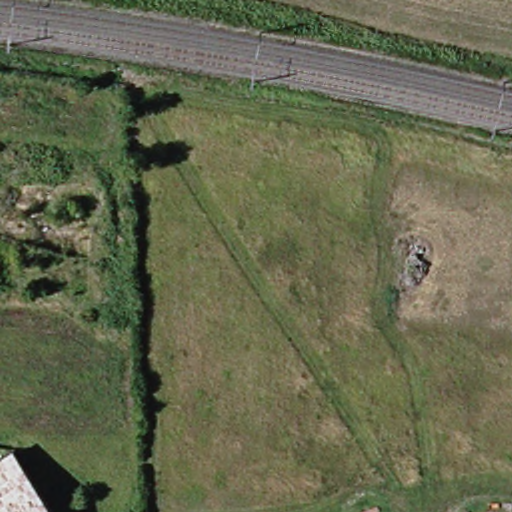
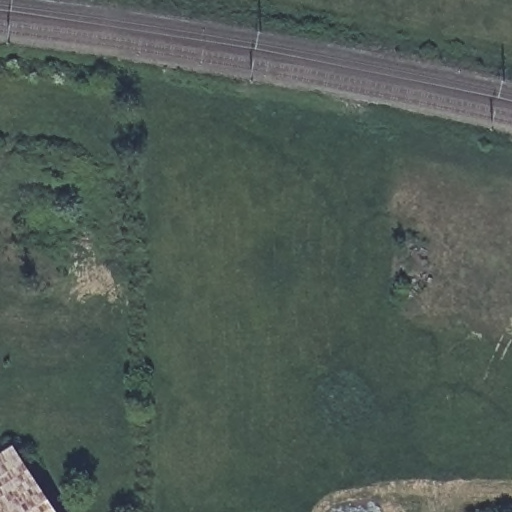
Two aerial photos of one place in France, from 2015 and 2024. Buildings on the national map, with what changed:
unchanged [(6,451),(47,512),(0,512),(0,455),(6,451)]

